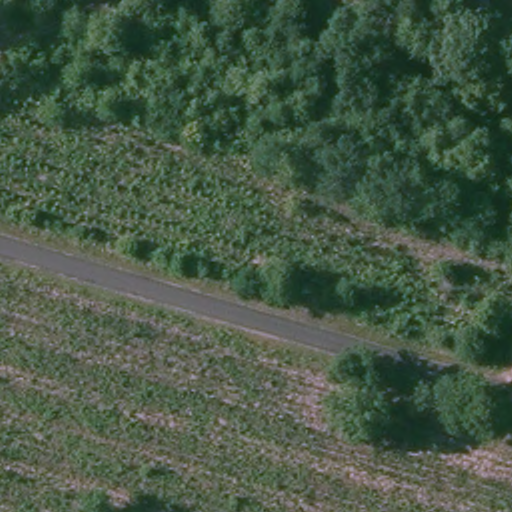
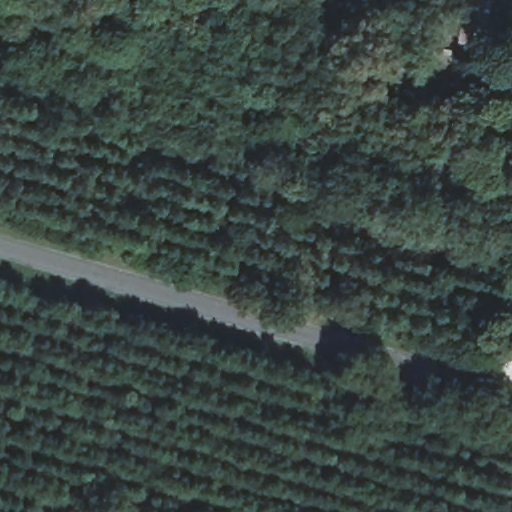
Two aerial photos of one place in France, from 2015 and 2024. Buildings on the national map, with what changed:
unchanged [(459,35),(463,0),(493,0),(487,40),(459,35)]

